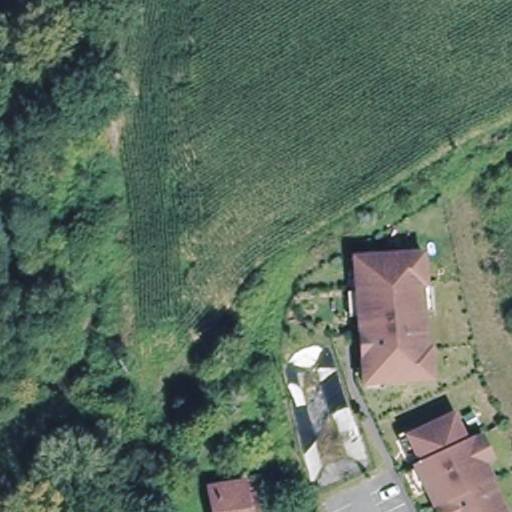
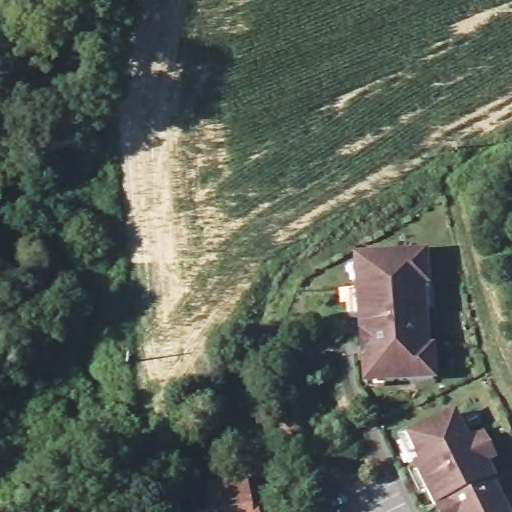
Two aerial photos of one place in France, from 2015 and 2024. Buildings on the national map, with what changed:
unchanged [(411,278),(407,280),(429,342),(434,340),(443,368),(388,387),(372,339),(361,344),(347,298),(357,293),(347,265),(402,247),(411,278)]
unchanged [(447,505),(438,510),(418,471),(424,467),(408,440),(452,415),(466,440),(471,437),(494,478),(490,482),(508,512),(451,512),(447,505)]
unchanged [(254,505),(260,503),(262,512),(221,512),(216,487),(248,483),(254,505)]

